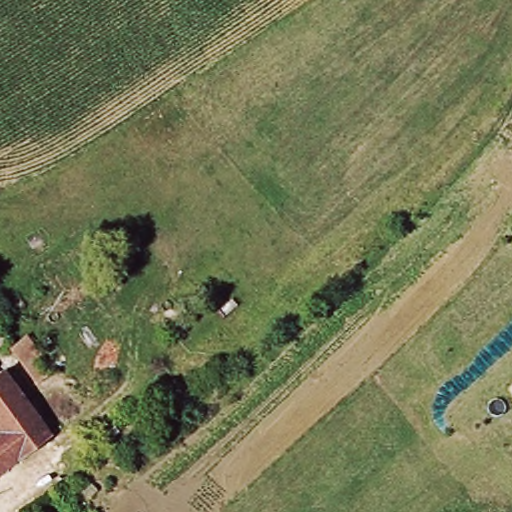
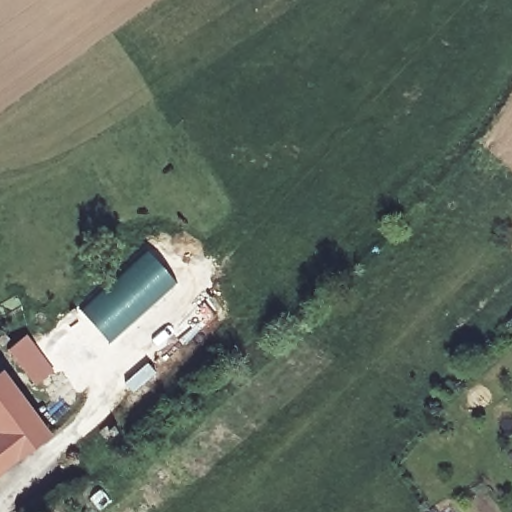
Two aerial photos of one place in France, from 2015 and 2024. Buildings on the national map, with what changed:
new [(146,245),(179,282),(110,343),(77,306),(146,245)]
unchanged [(10,348),(26,337),(52,372),(36,383),(10,348)]
unchanged [(0,431),(0,379),(8,373),(55,438),(23,461),(3,434),(0,431)]
unchanged [(119,431),(105,442),(94,430),(108,418),(119,431)]
unchanged [(3,434),(23,461),(0,478),(0,436),(3,434)]

